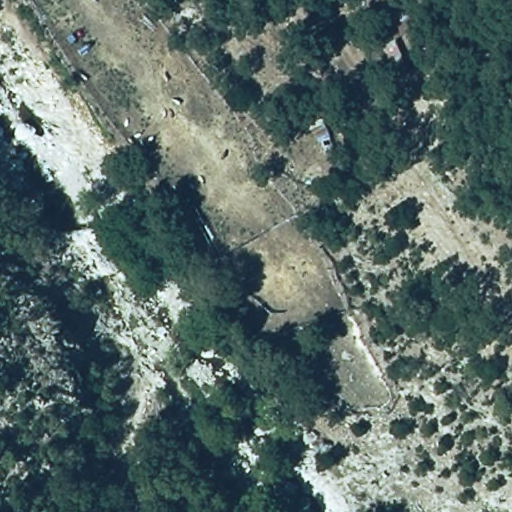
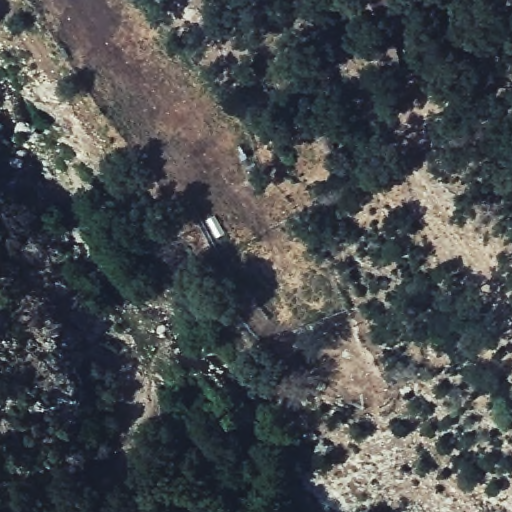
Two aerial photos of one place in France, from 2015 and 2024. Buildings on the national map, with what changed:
unchanged [(414,10),(384,31),(366,0),(407,0),(414,10)]

